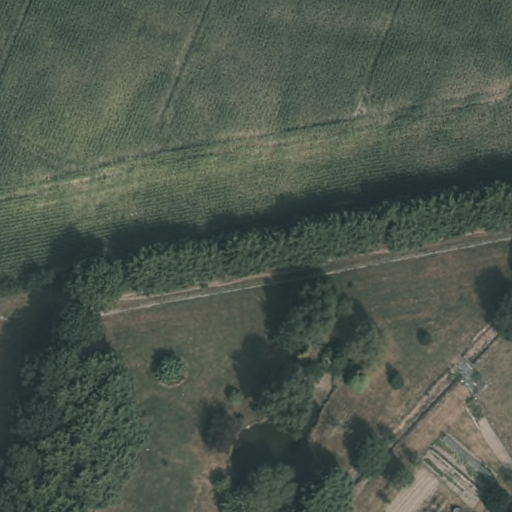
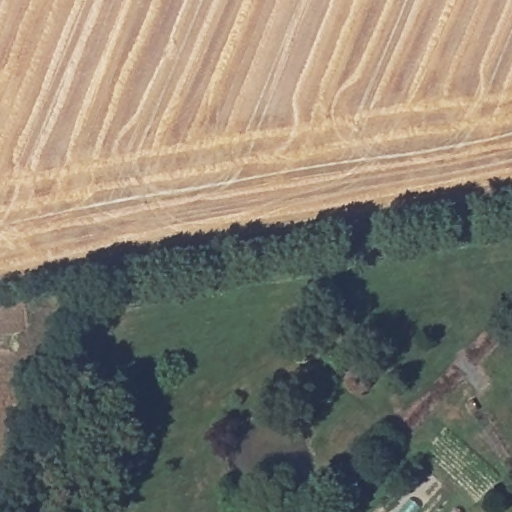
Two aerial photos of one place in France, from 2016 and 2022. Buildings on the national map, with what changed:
[]

